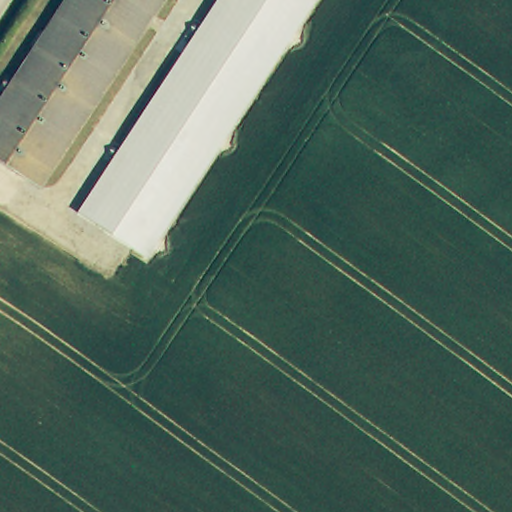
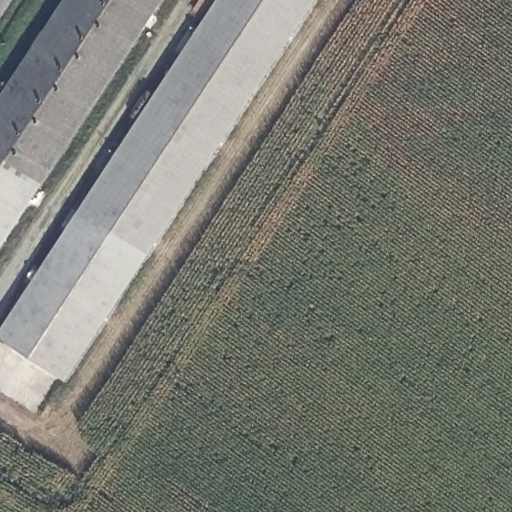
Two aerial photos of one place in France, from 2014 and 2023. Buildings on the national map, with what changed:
unchanged [(0,153),(0,104),(67,0),(162,0),(45,184),(0,153)]
unchanged [(79,213),(217,0),(313,0),(144,255),(79,213)]
new [(0,251),(0,153),(38,179),(45,184),(0,251)]
new [(63,379),(0,337),(0,329),(79,213),(144,255),(63,379)]

